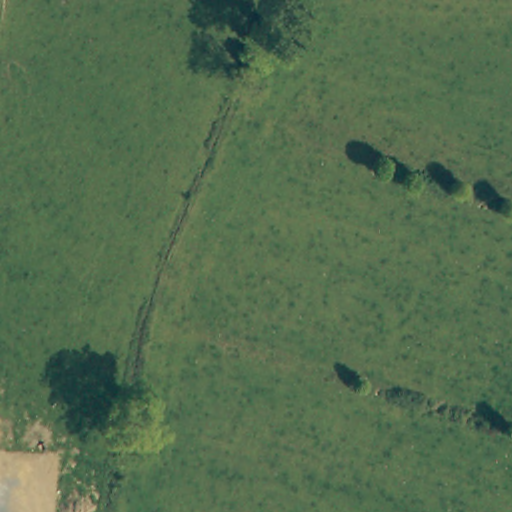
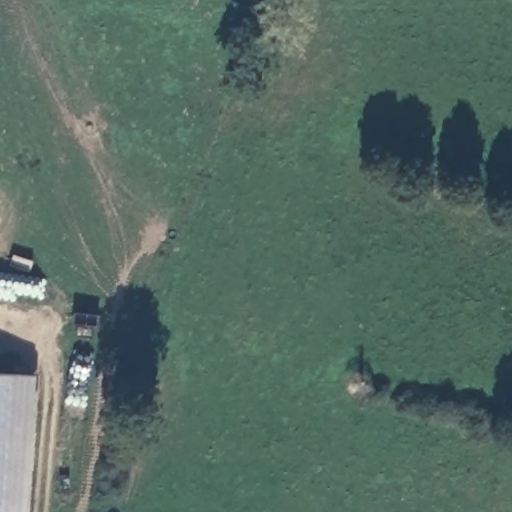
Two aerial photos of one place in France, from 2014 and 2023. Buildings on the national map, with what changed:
new [(34,374),(25,512),(0,512),(0,372),(34,374)]

